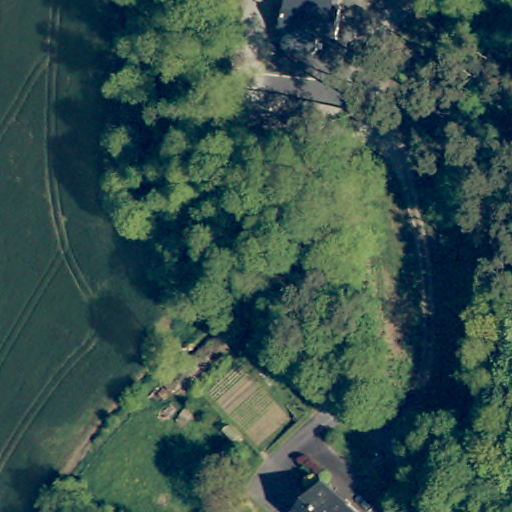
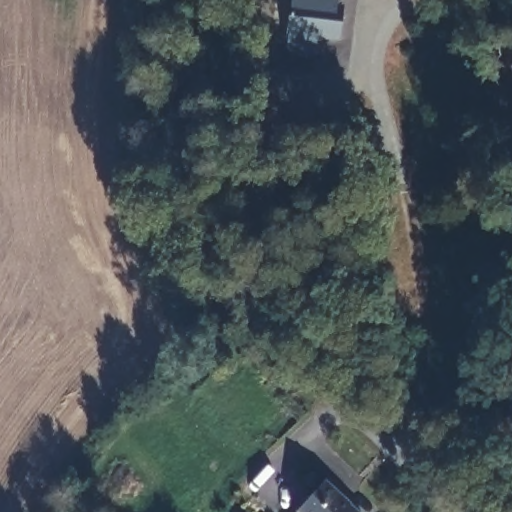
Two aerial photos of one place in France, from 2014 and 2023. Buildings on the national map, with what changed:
unchanged [(322,0),(322,6),(340,7),(337,39),(314,37),(315,32),(285,29),(287,0),(314,0),(322,0)]
unchanged [(369,512),(293,512),(330,473),(370,510),(369,512)]

